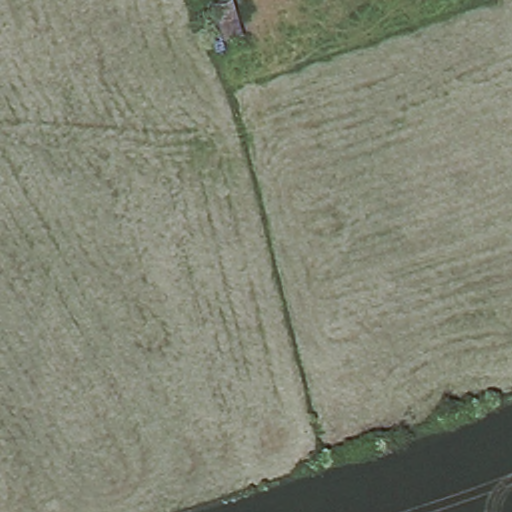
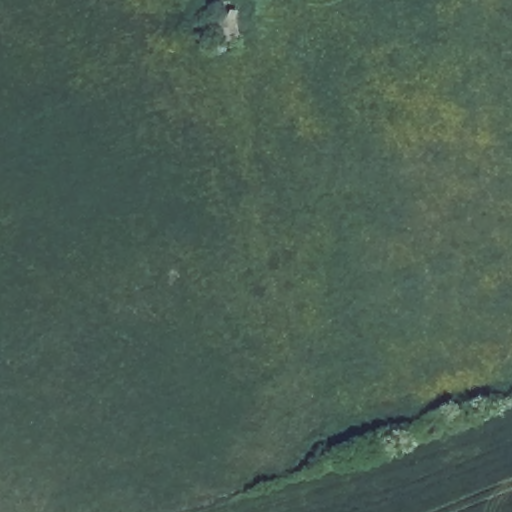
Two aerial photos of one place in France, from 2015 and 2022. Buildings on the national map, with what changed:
unchanged [(217,44),(208,15),(218,12),(214,0),(239,0),(250,36),(217,44)]

